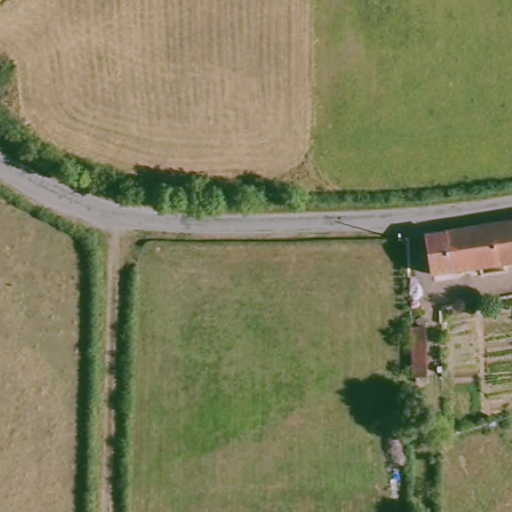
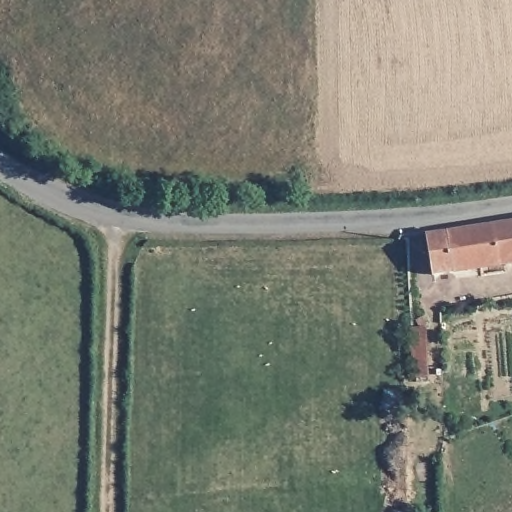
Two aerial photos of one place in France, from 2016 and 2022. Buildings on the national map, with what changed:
unchanged [(424,234),(512,219),(512,262),(429,274),(424,234)]
unchanged [(407,327),(425,327),(426,374),(409,375),(407,327)]

